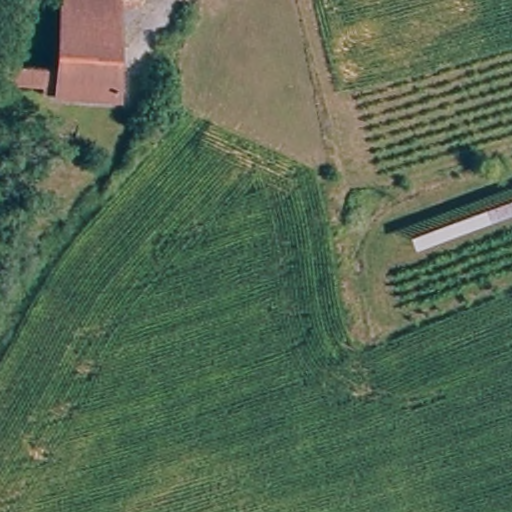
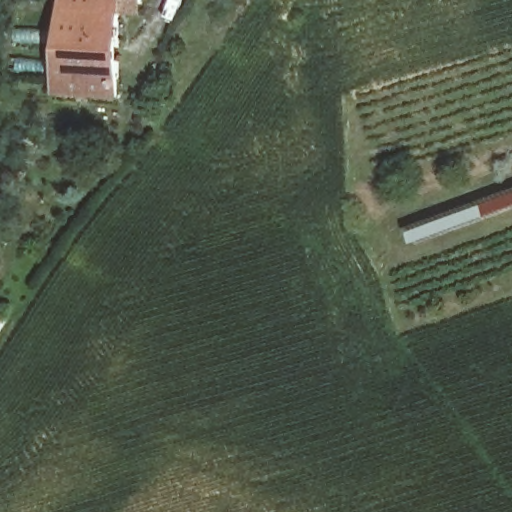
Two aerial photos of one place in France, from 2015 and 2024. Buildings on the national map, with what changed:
unchanged [(2,91),(6,64),(52,66),(57,0),(140,0),(140,10),(122,10),(112,96),(28,92),(26,116),(1,114),(2,91)]
unchanged [(58,119),(55,157),(44,157),(47,119),(58,119)]

